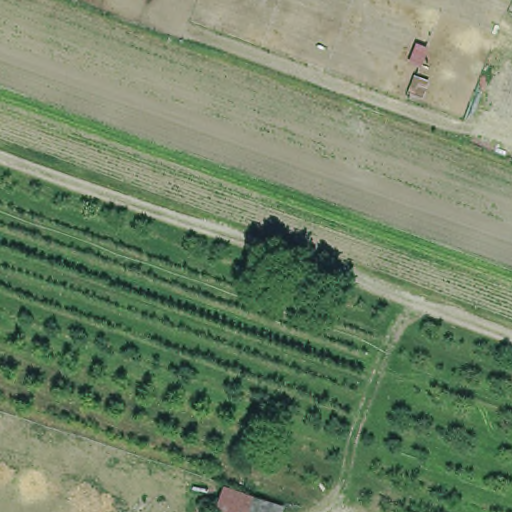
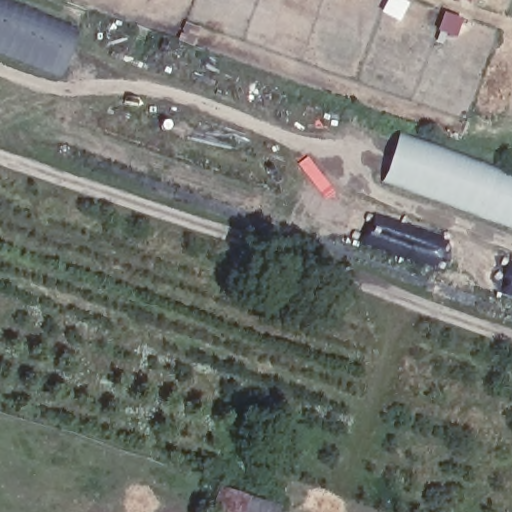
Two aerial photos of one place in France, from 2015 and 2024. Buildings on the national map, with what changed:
new [(80,29),(62,81),(0,57),(0,0),(8,0),(80,29)]
new [(409,4),(403,22),(382,14),(388,0),(401,0),(409,4)]
new [(471,3),(462,0),(472,0),(471,3)]
new [(463,20),(456,36),(439,32),(443,14),(463,20)]
new [(400,132),(512,173),(512,227),(383,180),(400,132)]
unchanged [(282,505),(280,512),(212,512),(222,485),(282,505)]

